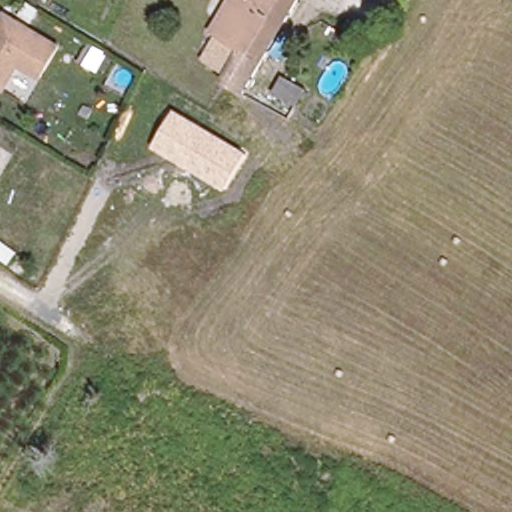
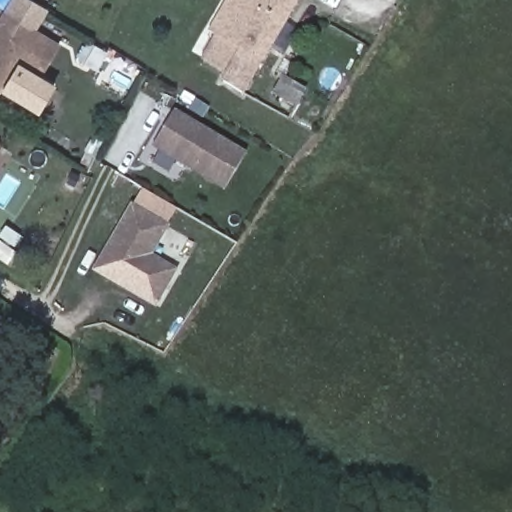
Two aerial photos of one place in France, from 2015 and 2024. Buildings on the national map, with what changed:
unchanged [(225,81),(232,70),(213,59),(224,40),(212,33),(231,0),(298,0),(242,91),(225,81)]
unchanged [(56,44),(39,76),(17,65),(4,91),(0,89),(0,18),(1,15),(56,44)]
unchanged [(272,89),(284,67),(292,72),(307,81),(295,102),(280,93),(272,89)]
unchanged [(226,190),(153,149),(176,110),(247,151),(226,190)]
new [(156,307),(92,271),(131,203),(170,225),(153,255),(178,269),(156,307)]

